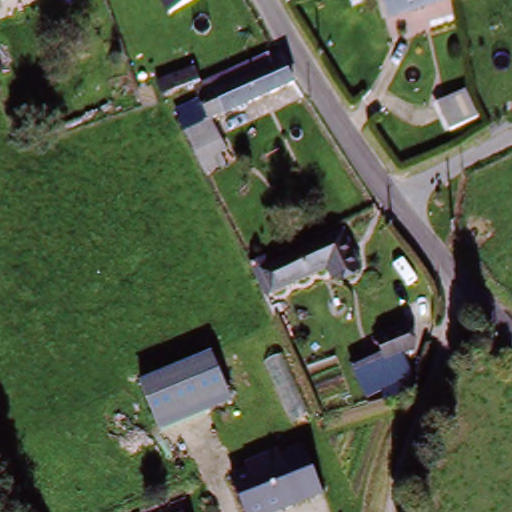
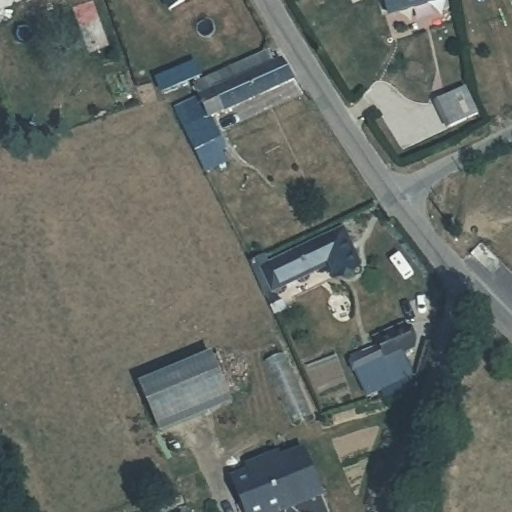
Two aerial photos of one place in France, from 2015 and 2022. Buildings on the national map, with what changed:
unchanged [(160,0),(189,0),(167,13),(160,0)]
unchanged [(390,0),(440,0),(394,14),(390,0)]
unchanged [(200,103),(194,90),(268,56),(274,69),(281,66),(293,87),(209,124),(200,103)]
unchanged [(465,87),(477,115),(450,127),(438,101),(465,87)]
unchanged [(203,180),(197,169),(198,168),(173,115),(200,103),(209,124),(224,156),(217,159),(223,171),(203,180)]
unchanged [(342,227),(357,262),(331,273),(326,262),(264,290),(254,268),(342,227)]
unchanged [(369,397),(361,379),(354,363),(383,350),(380,342),(408,330),(419,355),(406,361),(413,378),(369,397)]
unchanged [(142,385),(213,355),(237,407),(159,437),(142,385)]
unchanged [(237,486),(254,479),(252,475),(284,462),(285,467),(308,458),(326,502),(302,512),(247,512),(237,486)]

